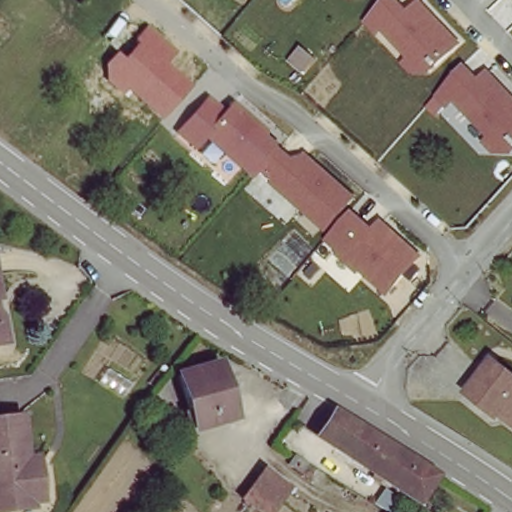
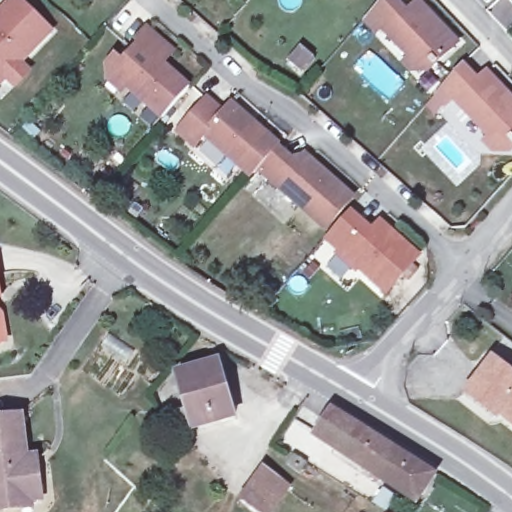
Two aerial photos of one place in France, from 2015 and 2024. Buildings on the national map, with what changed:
new [(9,0),(21,0),(54,33),(25,64),(33,71),(14,91),(5,83),(0,88),(0,10),(9,0)]
unchanged [(349,0),(354,0),(351,3),(349,0)]
unchanged [(412,75),(399,63),(406,60),(380,35),(377,39),(362,25),(386,0),(401,0),(408,8),(415,0),(419,0),(461,44),(431,75),(412,75)]
unchanged [(176,52),(166,63),(191,85),(160,120),(124,90),(120,93),(105,81),(103,65),(114,52),(124,60),(137,45),(132,41),(145,26),(176,52)]
unchanged [(479,141),(484,136),(451,104),(445,111),(432,98),(465,62),(478,75),(486,68),(512,95),(512,155),(494,154),(479,141)]
unchanged [(258,174),(252,180),(207,141),(196,154),(174,134),(206,96),(224,111),(231,103),(281,145),(258,174)]
unchanged [(258,174),(281,145),(298,159),(303,151),(355,198),(323,232),(258,174)]
unchanged [(387,299),(357,273),(354,276),(331,256),(336,252),(324,242),(352,209),(372,228),(379,219),(424,258),(387,299)]
unchanged [(2,338),(0,338),(0,324),(2,338)]
unchanged [(512,377),(512,420),(498,410),(494,415),(465,393),(490,361),(512,377)]
unchanged [(226,362),(231,381),(226,382),(232,419),(193,427),(183,367),(226,362)]
unchanged [(320,437),(336,414),(351,423),(364,429),(436,474),(420,500),(320,437)]
unchanged [(17,416),(25,468),(38,466),(43,501),(0,506),(0,417),(17,416)]
unchanged [(246,494),(270,463),(293,481),(290,486),(271,512),(269,512),(256,502),(246,494)]

